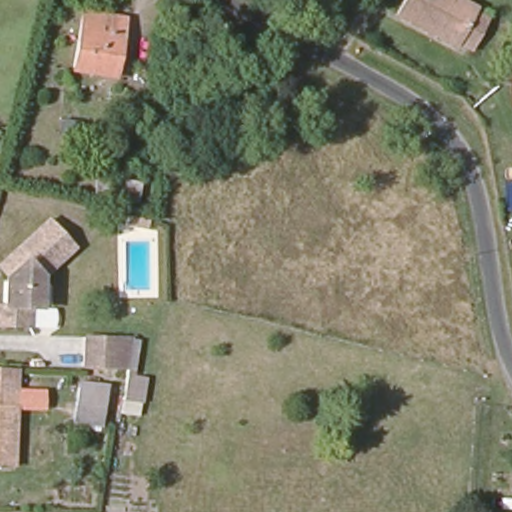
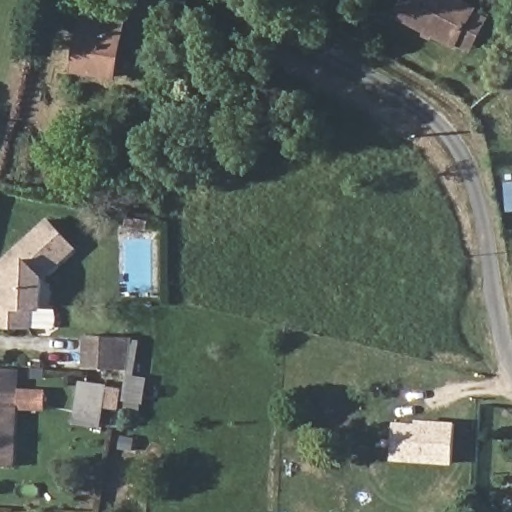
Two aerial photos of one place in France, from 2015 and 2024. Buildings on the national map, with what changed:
unchanged [(459,38),(456,44),(400,13),(407,0),(469,0),(476,4),(473,10),(485,16),(470,45),(459,38)]
unchanged [(125,14),(118,75),(77,70),(87,10),(125,14)]
unchanged [(95,198),(95,182),(110,182),(138,183),(137,199),(107,199),(95,198)]
unchanged [(30,311),(21,311),(21,331),(0,330),(0,275),(0,266),(0,260),(36,226),(60,254),(30,282),(30,311)]
unchanged [(84,335),(129,336),(125,361),(126,366),(83,366),(84,335)]
unchanged [(0,387),(0,367),(20,368),(19,388),(0,387)]
unchanged [(102,385),(101,425),(76,425),(76,384),(102,385)]
unchanged [(13,392),(12,466),(0,466),(0,392),(13,392)]
new [(452,427),(449,461),(390,460),(392,424),(452,427)]

